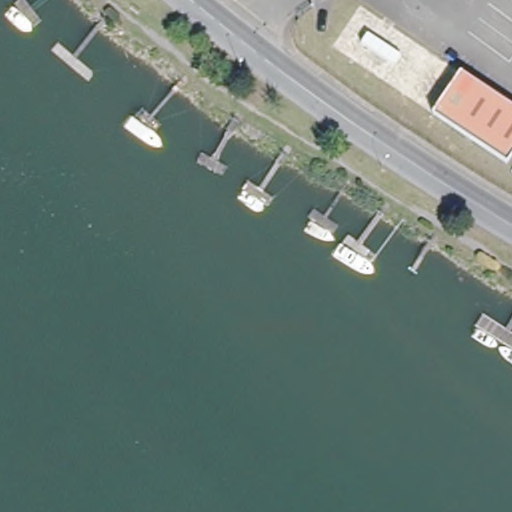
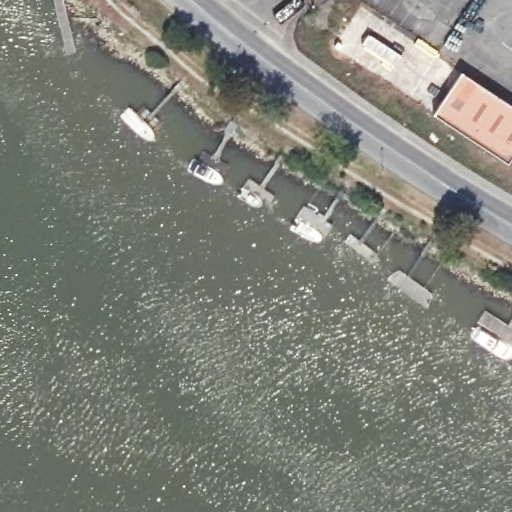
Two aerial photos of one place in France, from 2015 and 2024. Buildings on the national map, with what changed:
unchanged [(512,160),(511,162),(437,110),(465,69),(512,101),(512,160)]

